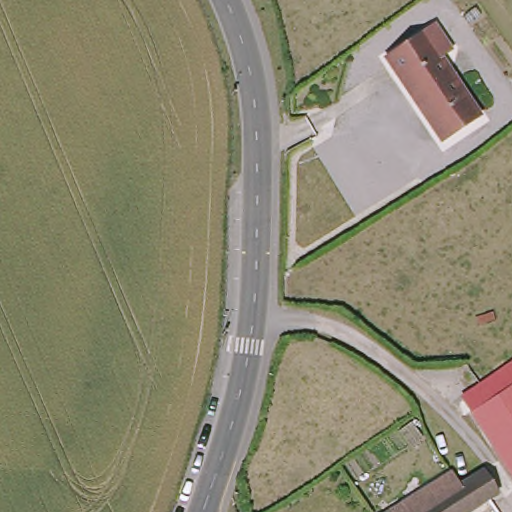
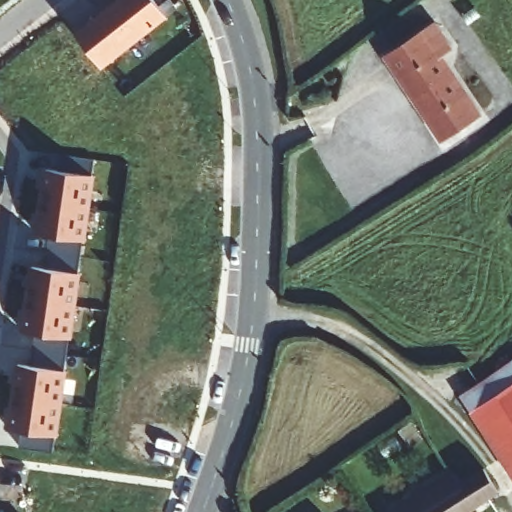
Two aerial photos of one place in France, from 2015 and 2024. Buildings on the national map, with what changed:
new [(169,18),(102,69),(75,34),(119,0),(154,0),(169,18)]
unchanged [(437,25),(452,46),(439,55),(478,115),(442,141),(386,59),(437,25)]
new [(93,174),(97,174),(87,241),(83,240),(79,271),(82,272),(72,338),(69,337),(65,368),(69,369),(60,437),(55,436),(53,449),(20,443),(22,429),(7,426),(17,362),(30,364),(35,334),(22,332),(30,264),(45,267),(50,235),(35,232),(43,167),(52,169),(54,151),(95,157),(93,174)]
unchanged [(470,413),(460,398),(512,363),(512,479),(470,413)]
unchanged [(382,512),(455,467),(465,480),(489,463),(503,487),(463,512),(382,512)]

